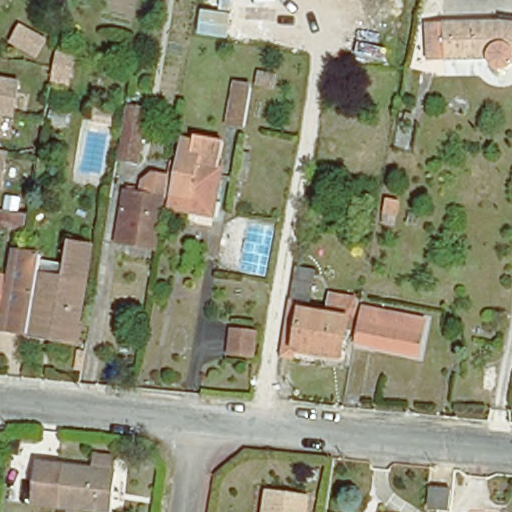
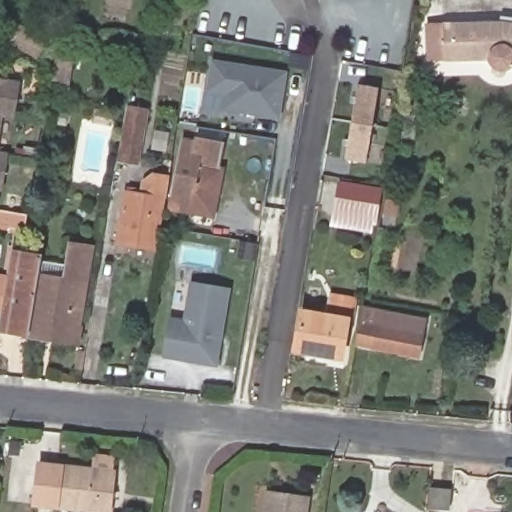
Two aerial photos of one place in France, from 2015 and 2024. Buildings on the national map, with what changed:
unchanged [(493,63),(488,59),(486,53),(425,54),(425,24),(424,17),(500,14),(508,15),(512,16),(512,60),(506,64),(500,65),(493,64),(493,63)]
new [(20,24),(45,38),(35,55),(10,41),(20,24)]
new [(279,120),(220,110),(222,95),(204,92),(210,59),(287,71),(279,120)]
demolished [(239,60),(254,63),(242,126),(227,124),(239,60)]
unchanged [(56,70),(72,72),(70,87),(54,85),(56,70)]
unchanged [(13,116),(2,114),(0,125),(0,78),(19,82),(13,116)]
new [(365,164),(345,160),(357,84),(378,88),(365,164)]
unchanged [(133,109),(149,112),(142,154),(125,150),(133,109)]
unchanged [(193,141),(193,137),(219,141),(215,165),(221,166),(212,216),(169,209),(181,140),(193,141)]
unchanged [(7,153),(1,189),(0,189),(0,152),(7,153)]
unchanged [(126,190),(142,192),(144,179),(154,171),(168,174),(165,195),(156,247),(117,241),(126,190)]
new [(339,181),(381,190),(373,234),(330,225),(339,181)]
unchanged [(25,218),(23,231),(14,230),(8,229),(10,215),(25,218)]
unchanged [(8,273),(11,255),(43,260),(40,280),(63,283),(69,246),(91,250),(76,346),(51,342),(52,335),(30,331),(28,339),(0,334),(0,324),(2,311),(0,311),(0,290),(5,291),(8,273)]
demolished [(295,266),(314,269),(309,303),(289,300),(295,266)]
new [(216,367),(161,357),(168,316),(183,318),(189,281),(229,288),(216,367)]
unchanged [(301,310),(326,313),(329,294),(355,298),(350,328),(346,327),(342,355),(294,347),(301,310)]
unchanged [(359,322),(363,306),(425,318),(418,355),(374,347),(356,343),(359,322)]
demolished [(233,326),(255,329),(252,355),(230,352),(233,326)]
unchanged [(111,512),(34,503),(39,462),(93,468),(95,456),(114,458),(112,470),(116,471),(111,512)]
unchanged [(430,487),(450,490),(448,509),(428,506),(430,487)]
unchanged [(307,497),(305,512),(265,512),(268,491),(307,497)]

